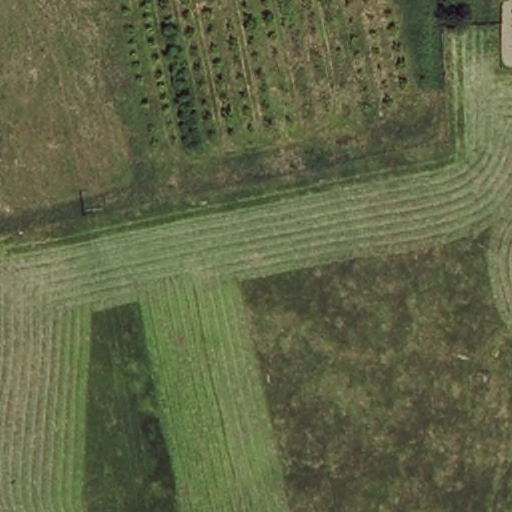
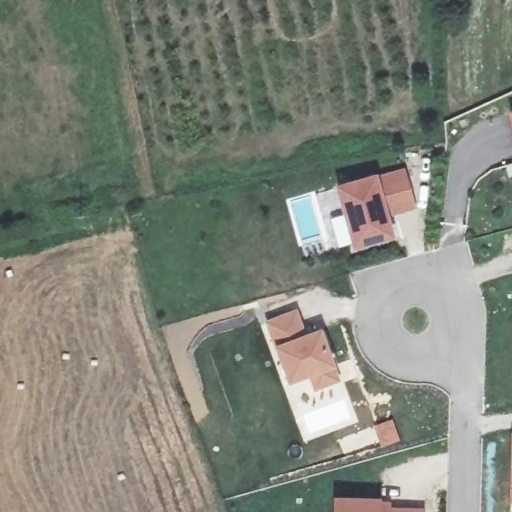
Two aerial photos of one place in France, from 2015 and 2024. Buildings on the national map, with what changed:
new [(512,112),(512,125),(509,113),(512,112)]
new [(377,175),(405,169),(416,209),(390,217),(395,239),(354,252),(335,187),(377,175)]
new [(298,310),(306,335),(321,330),(337,367),(342,381),(315,391),(311,377),(290,385),(276,347),(266,323),(298,310)]
new [(510,504),(512,457),(512,504),(510,504)]
new [(394,502),(393,508),(427,508),(426,512),(334,512),(335,497),(383,500),(394,502)]

